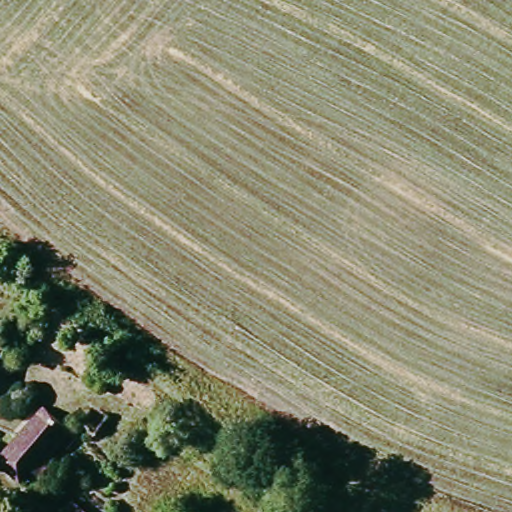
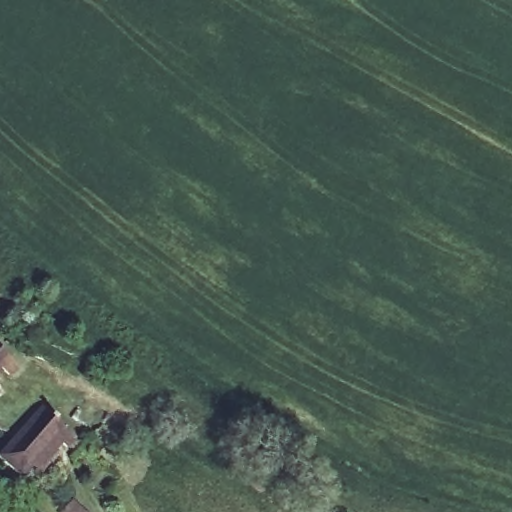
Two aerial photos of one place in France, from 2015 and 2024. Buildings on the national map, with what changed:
unchanged [(0,367),(0,349),(17,365),(9,373),(1,367),(0,367)]
unchanged [(19,485),(0,467),(0,456),(42,411),(74,441),(66,451),(57,445),(31,473),(38,480),(31,489),(24,481),(19,485)]
unchanged [(77,502),(87,512),(68,512),(77,502)]

